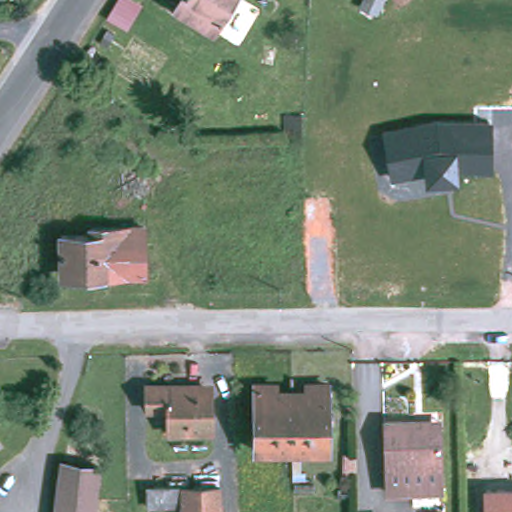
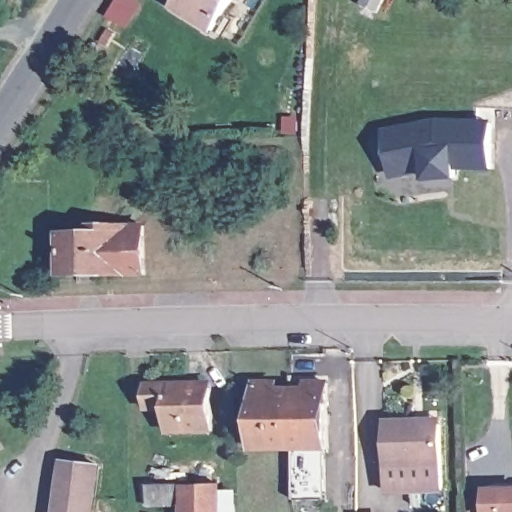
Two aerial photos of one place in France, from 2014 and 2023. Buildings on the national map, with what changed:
unchanged [(213,32),(176,9),(182,0),(233,0),(213,32)]
unchanged [(361,6),(365,0),(401,0),(391,22),(361,6)]
unchanged [(432,121),(493,122),(492,173),(456,171),(456,175),(427,178),(426,172),(392,178),(384,131),(432,121)]
unchanged [(146,275),(108,277),(106,258),(93,259),(92,236),(91,230),(144,228),(146,275)]
unchanged [(68,278),(63,273),(61,237),(92,236),(93,259),(106,258),(108,277),(68,278)]
unchanged [(189,385),(217,385),(218,428),(173,428),(173,404),(151,404),(151,381),(190,380),(189,385)]
unchanged [(255,449),(256,384),(276,384),(276,394),(291,394),(293,450),(255,449)]
unchanged [(307,384),(328,384),(328,450),(293,450),(291,394),(307,394),(307,384)]
unchanged [(442,422),(444,489),(388,490),(384,420),(442,422)]
unchanged [(93,512),(57,512),(63,462),(98,466),(93,512)]
unchanged [(188,512),(188,501),(153,502),(152,481),(224,481),(225,512),(188,512)]
unchanged [(512,512),(487,512),(486,491),(512,491),(512,512)]

